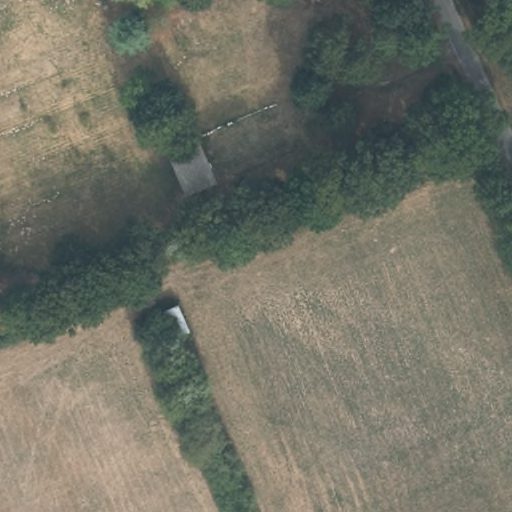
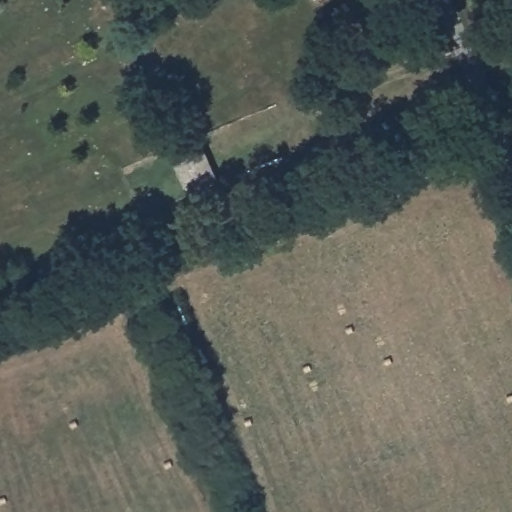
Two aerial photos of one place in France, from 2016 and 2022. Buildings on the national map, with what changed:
unchanged [(221,189),(189,201),(165,145),(197,133),(221,189)]

